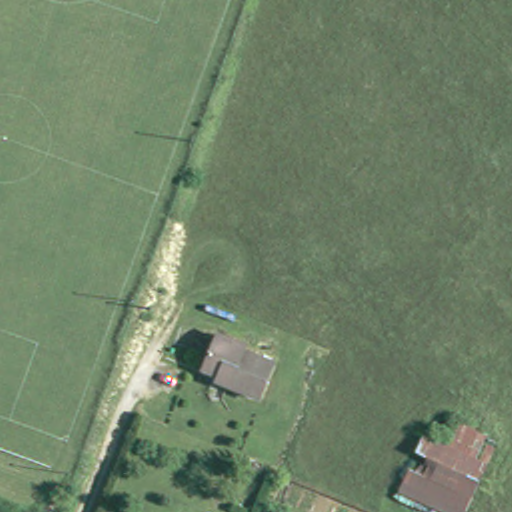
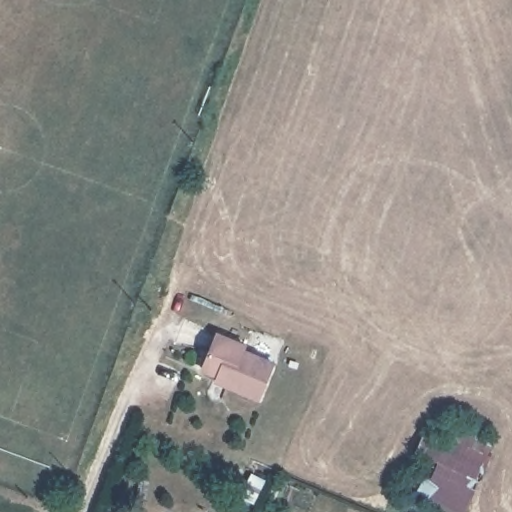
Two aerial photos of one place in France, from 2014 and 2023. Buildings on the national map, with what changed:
unchanged [(224,334),(222,339),(261,358),(244,397),(183,362),(197,324),(224,334)]
unchanged [(503,434),(474,512),(458,512),(410,494),(443,411),(503,434)]

